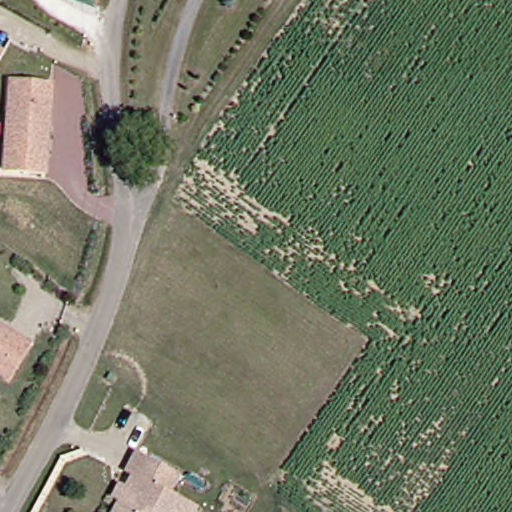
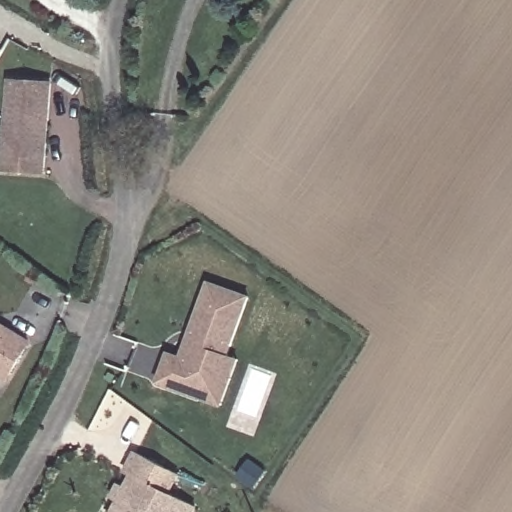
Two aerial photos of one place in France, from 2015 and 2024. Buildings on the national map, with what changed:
unchanged [(2,50),(0,55),(0,49),(2,50)]
unchanged [(43,171),(24,169),(2,168),(2,158),(9,79),(50,82),(43,171)]
new [(249,298),(227,355),(239,360),(222,407),(156,384),(167,353),(181,356),(206,281),(249,298)]
unchanged [(0,375),(0,328),(28,345),(7,379),(0,375)]
unchanged [(118,502),(112,499),(117,485),(125,487),(132,474),(124,470),(133,451),(147,458),(177,473),(168,491),(196,506),(193,512),(113,512),(114,509),(118,502)]

